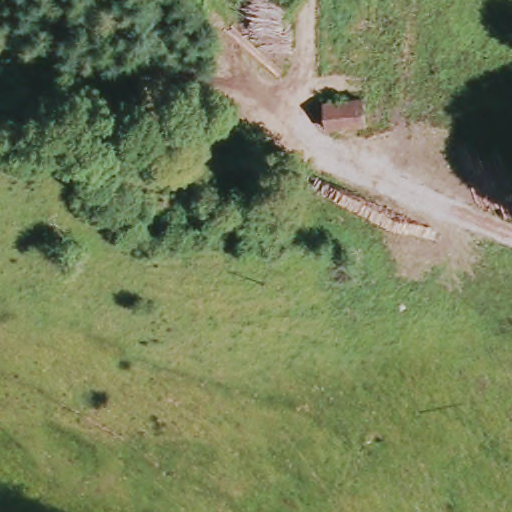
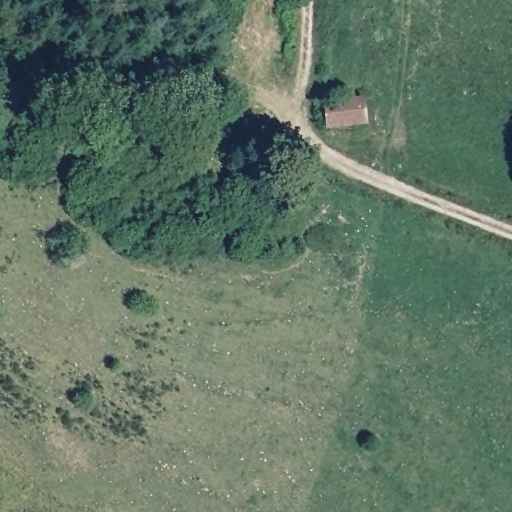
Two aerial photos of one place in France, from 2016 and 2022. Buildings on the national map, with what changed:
unchanged [(324,102),(363,98),(366,123),(327,128),(324,102)]

